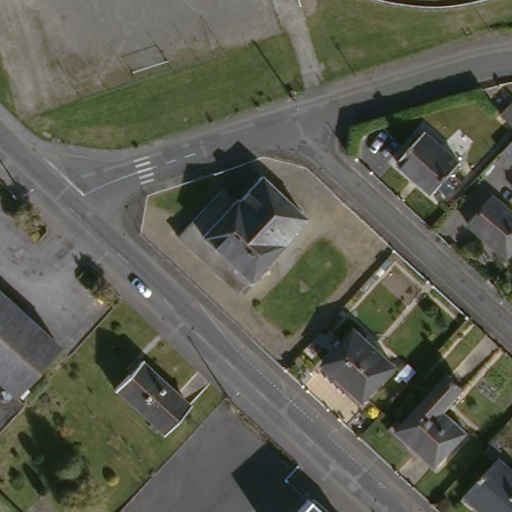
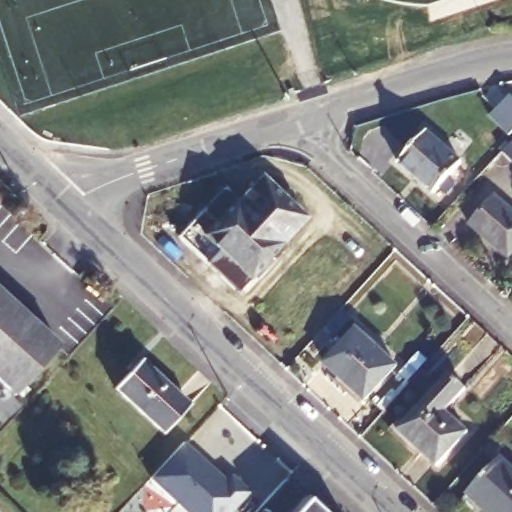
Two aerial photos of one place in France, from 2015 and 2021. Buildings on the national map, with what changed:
unchanged [(498,118),(512,105),(512,132),(498,118)]
unchanged [(398,164),(426,133),(460,164),(435,196),(398,164)]
unchanged [(499,158),(512,145),(512,171),(499,158)]
unchanged [(270,268),(245,294),(180,233),(225,185),(237,199),(262,173),(307,215),(270,254),(277,260),(270,268)]
unchanged [(467,225),(492,196),(512,212),(512,253),(507,259),(467,225)]
unchanged [(7,401),(0,393),(0,293),(60,346),(16,391),(7,401)]
unchanged [(325,363),(357,330),(396,366),(365,401),(361,405),(326,373),(330,369),(325,363)]
unchanged [(125,368),(132,361),(135,364),(138,361),(186,407),(160,436),(111,390),(129,372),(125,368)]
unchanged [(408,455),(410,451),(402,443),(389,431),(395,426),(442,373),(463,388),(442,411),(464,431),(434,464),(421,451),(417,457),(415,455),(412,459),(408,455)]
unchanged [(0,439),(0,393),(7,401),(16,391),(31,407),(0,439)]
new [(227,483),(233,477),(249,493),(231,512),(188,512),(152,478),(185,443),(227,483)]
unchanged [(463,495),(497,459),(512,472),(512,512),(482,512),(472,503),(468,509),(458,500),(463,495)]
unchanged [(312,512),(298,512),(305,505),(312,512)]

